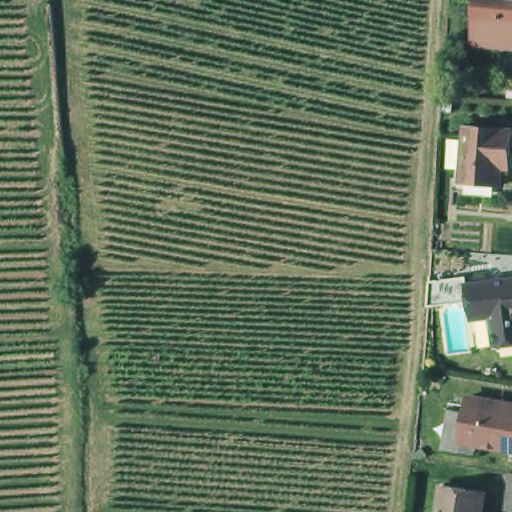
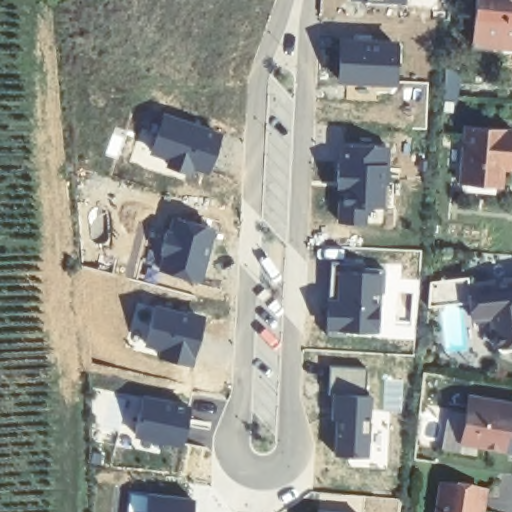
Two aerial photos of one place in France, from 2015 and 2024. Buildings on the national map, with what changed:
new [(405,1),(382,0),(405,0),(405,1)]
unchanged [(506,49),(479,47),(481,0),(512,0),(512,50),(506,49)]
new [(398,34),(398,85),(336,83),(336,33),(398,34)]
new [(443,65),(463,66),(458,100),(442,99),(443,65)]
new [(221,134),(212,171),(150,153),(162,113),(221,134)]
unchanged [(466,178),(471,120),(512,124),(512,162),(510,162),(507,162),(506,181),(506,193),(465,190),(466,178)]
new [(388,145),(385,208),(363,206),(362,222),(339,220),(343,144),(388,145)]
new [(203,284),(155,272),(170,215),(216,225),(203,284)]
new [(331,261),(383,268),(378,332),(325,330),(331,261)]
unchanged [(502,344),(496,340),(492,310),(473,312),(472,312),(468,278),(474,278),(473,269),(486,268),(486,276),(512,274),(512,343),(502,344)]
new [(203,312),(193,366),(158,358),(162,349),(142,344),(151,302),(203,312)]
new [(369,456),(333,454),(330,393),(330,364),(367,367),(366,392),(372,393),(369,456)]
unchanged [(459,444),(466,392),(512,400),(512,453),(459,444)]
new [(192,405),(180,445),(135,436),(141,395),(192,405)]
unchanged [(486,494),(485,512),(439,512),(442,489),(486,494)]
new [(145,512),(146,498),(195,500),(194,512),(145,512)]

